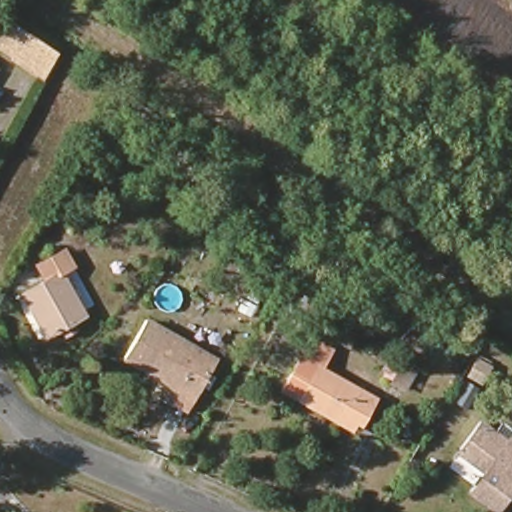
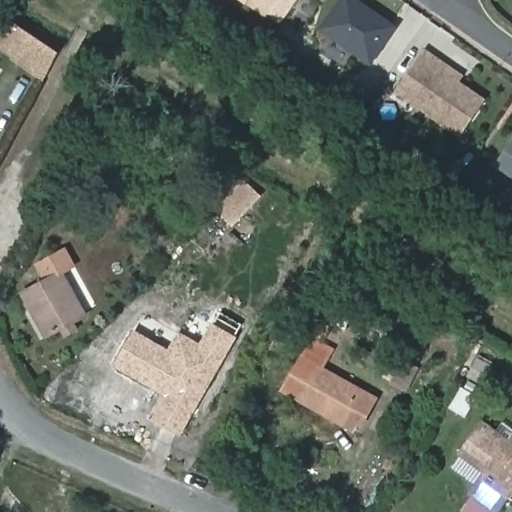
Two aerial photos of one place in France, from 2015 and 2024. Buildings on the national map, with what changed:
new [(236,0),(296,0),(275,29),(236,0)]
new [(319,31),(340,0),(357,0),(398,26),(371,67),(319,31)]
unchanged [(43,74),(12,57),(15,50),(0,42),(0,16),(57,47),(43,74)]
new [(486,100),(459,137),(394,92),(424,49),(463,76),(459,82),(486,100)]
new [(491,169),(512,136),(512,185),(491,169)]
unchanged [(51,339),(24,300),(46,283),(36,270),(60,252),(70,266),(59,275),(86,314),(51,339)]
unchanged [(164,393),(170,385),(127,352),(150,322),(216,371),(194,402),(186,411),(164,393)]
unchanged [(363,430),(349,422),(284,387),(311,341),(332,354),(324,369),(366,392),(379,399),(363,430)]
unchanged [(512,441),(512,485),(492,512),(469,495),(484,474),(458,455),(479,426),(505,446),(509,440),(512,441)]

